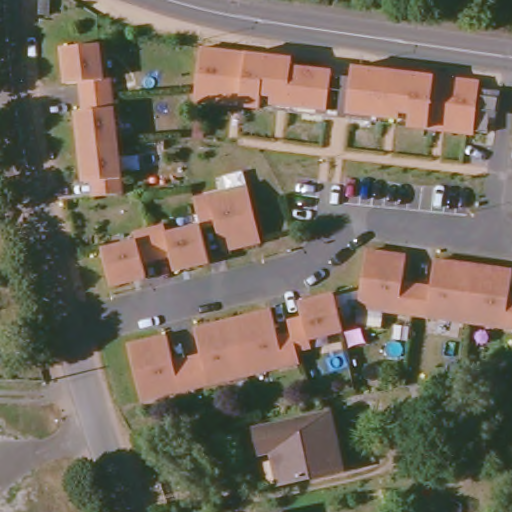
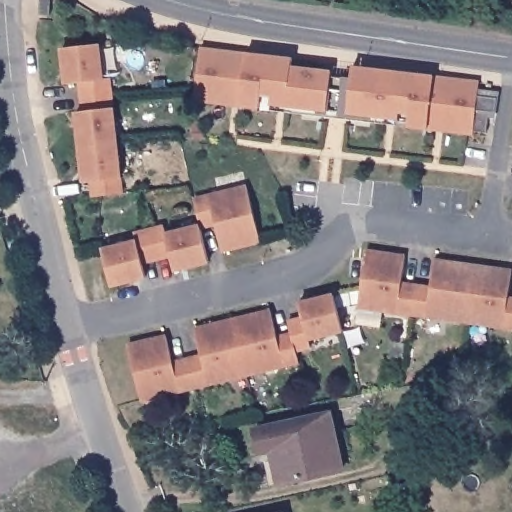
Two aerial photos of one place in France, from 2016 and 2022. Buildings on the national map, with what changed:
unchanged [(39,16),(42,0),(54,0),(54,16),(39,16)]
unchanged [(88,190),(87,180),(80,181),(73,109),(80,108),(78,77),(63,78),(59,43),(97,40),(100,75),(109,74),(118,189),(88,190)]
unchanged [(199,45),(247,51),(294,56),(293,63),(331,68),(331,75),(352,79),(354,63),(433,74),(479,80),(479,87),(499,90),(494,116),(487,115),(485,130),(473,128),(472,132),(426,126),(408,123),(409,111),(399,109),(398,118),(397,123),(271,108),(272,103),(273,93),(260,90),(258,107),(240,105),(191,100),(199,45)]
unchanged [(172,262),(169,249),(139,255),(142,270),(108,278),(98,241),(133,232),(132,225),(161,217),(163,223),(196,213),(191,192),(244,178),(259,232),(221,241),(213,216),(199,220),(206,253),(172,262)]
unchanged [(512,329),(358,308),(366,252),(407,257),(404,284),(429,287),(433,261),(512,270),(512,274),(509,298),(512,298),(512,329)]
unchanged [(126,345),(166,335),(172,361),(199,354),(193,327),(269,308),(276,332),(293,329),(291,318),(303,315),(299,299),(333,291),(342,326),(322,331),(324,340),(309,343),(311,357),(140,399),(126,345)]
unchanged [(278,481),(271,451),(260,453),(254,430),(329,414),(342,468),(278,481)]

